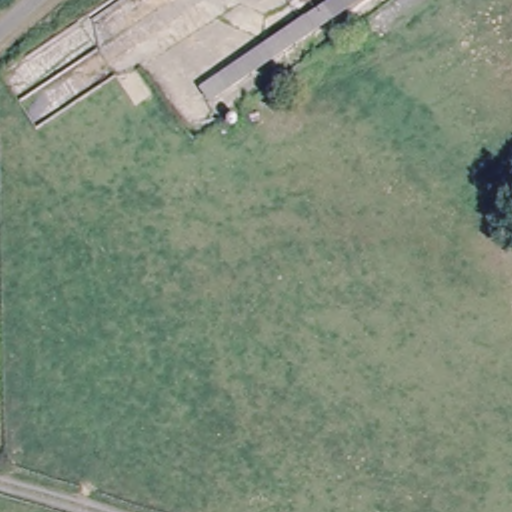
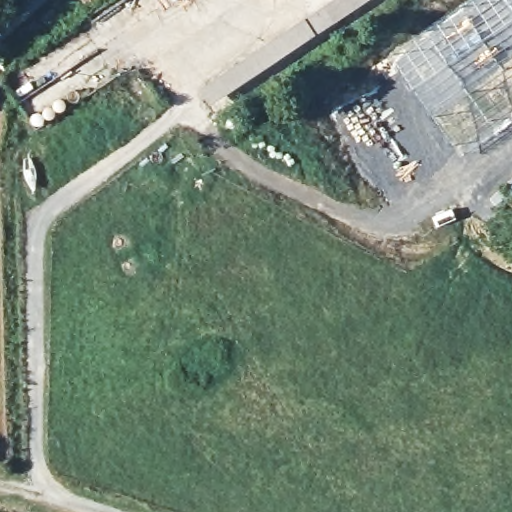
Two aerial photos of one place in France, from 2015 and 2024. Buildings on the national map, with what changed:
unchanged [(200,84),(323,0),(376,0),(215,105),(200,84)]
new [(469,0),(512,0),(512,121),(461,155),(390,55),(469,0)]

